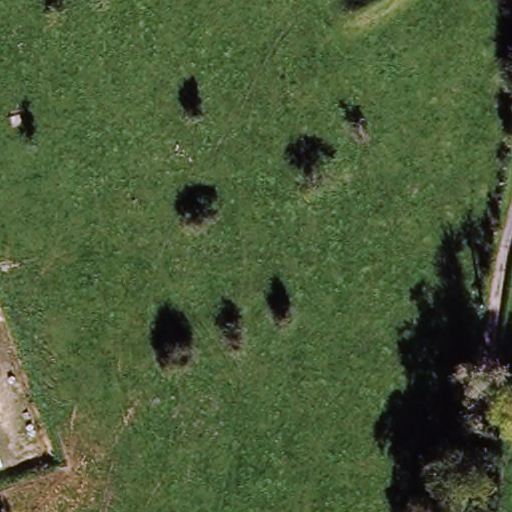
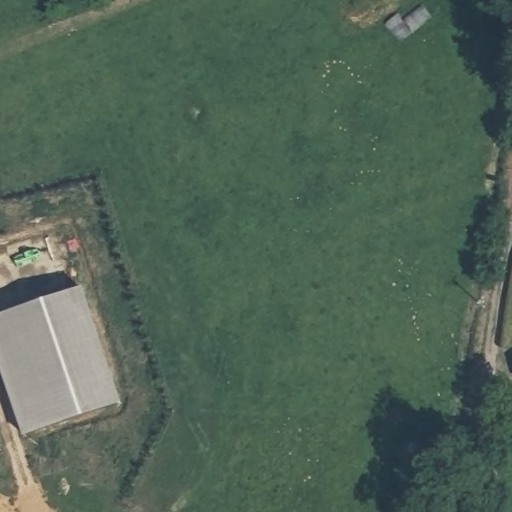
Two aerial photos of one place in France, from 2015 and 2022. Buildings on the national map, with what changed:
new [(87,293),(127,408),(30,441),(0,354),(0,324),(87,293)]
unchanged [(508,351),(512,352),(512,376),(505,375),(508,351)]
unchanged [(3,465),(0,467),(0,457),(3,465)]

